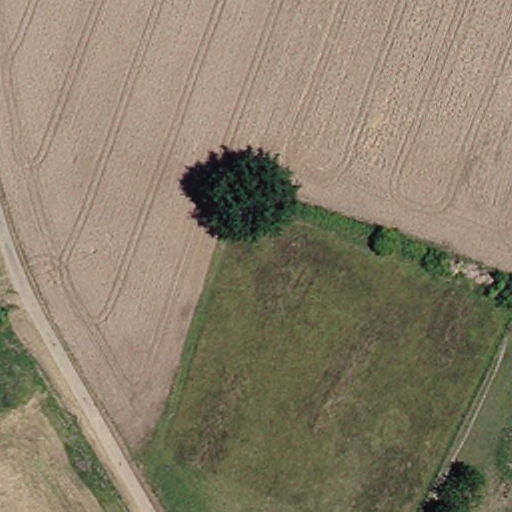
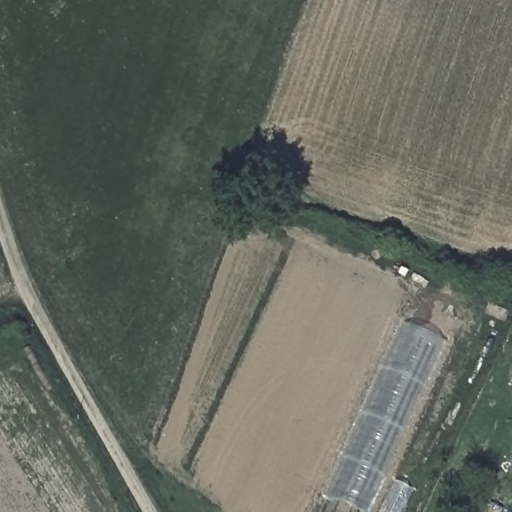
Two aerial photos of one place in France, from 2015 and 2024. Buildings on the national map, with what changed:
new [(367,512),(362,512),(327,498),(405,322),(445,340),(367,512)]

